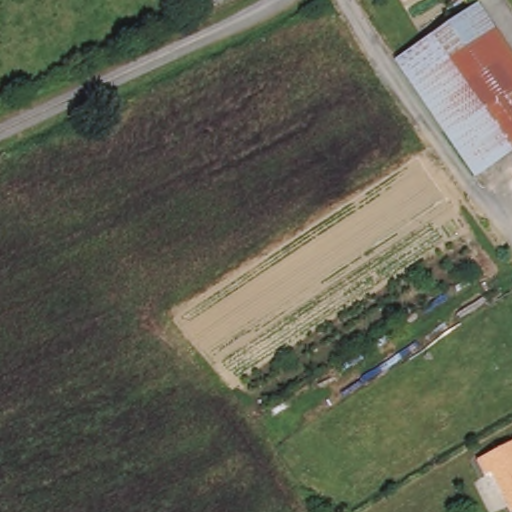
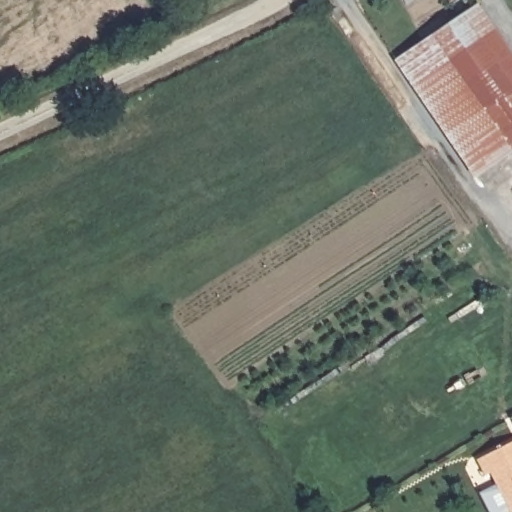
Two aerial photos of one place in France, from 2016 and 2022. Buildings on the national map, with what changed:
unchanged [(512,57),(512,153),(470,180),(392,61),(480,7),(512,57)]
unchanged [(487,473),(480,457),(512,441),(512,512),(492,471),(487,473)]

